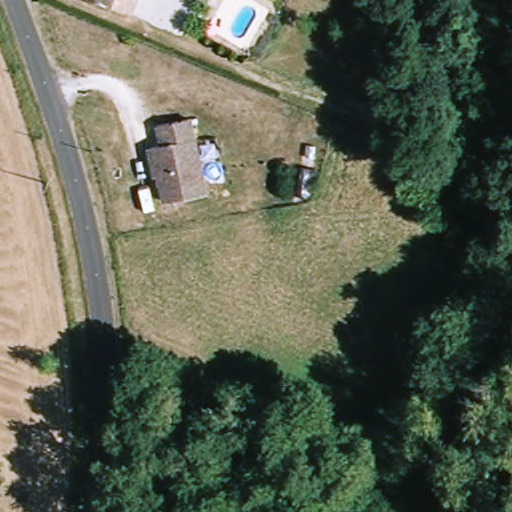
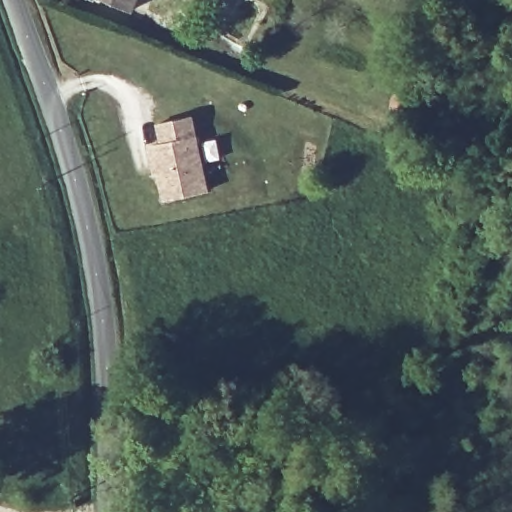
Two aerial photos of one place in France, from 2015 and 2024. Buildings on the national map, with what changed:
unchanged [(133,11),(104,0),(138,0),(133,11)]
unchanged [(184,115),(194,112),(195,119),(210,188),(168,197),(156,142),(165,140),(161,121),(184,115)]

